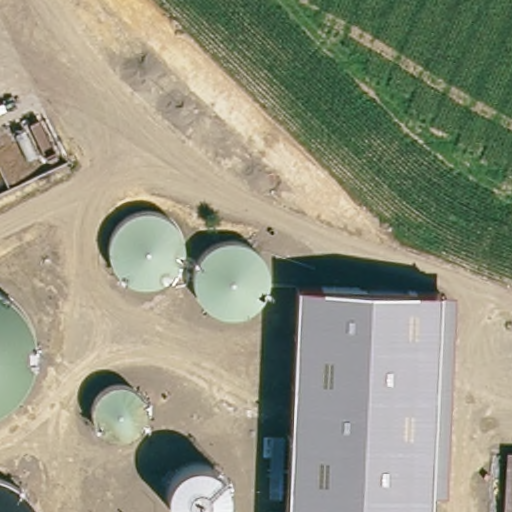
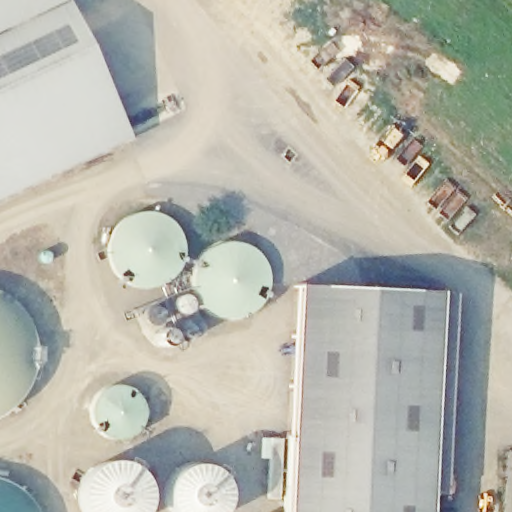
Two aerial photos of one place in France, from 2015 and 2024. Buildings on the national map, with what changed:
new [(132,140),(0,200),(0,0),(67,0),(132,140)]
unchanged [(439,292),(453,296),(444,494),(431,491),(430,512),(287,512),(297,287),(439,292)]
unchanged [(512,453),(512,497),(508,497),(507,453),(512,453)]
unchanged [(512,497),(512,512),(508,512),(508,497),(512,497)]

